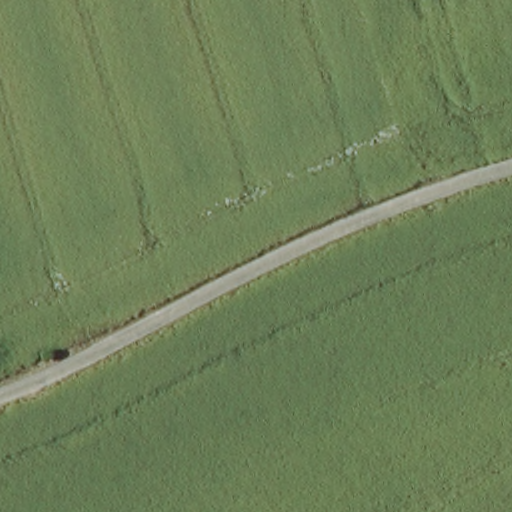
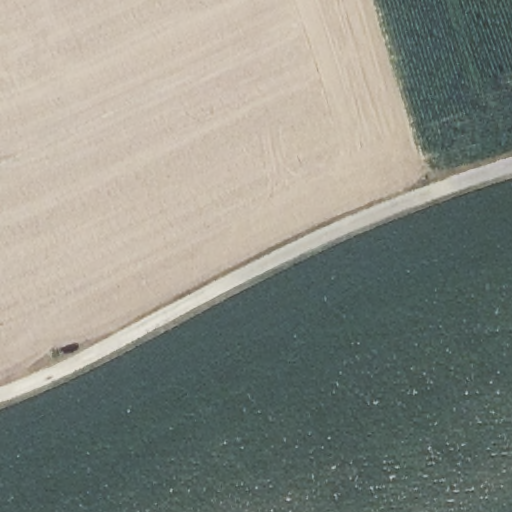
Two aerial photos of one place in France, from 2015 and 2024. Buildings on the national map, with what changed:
[]

